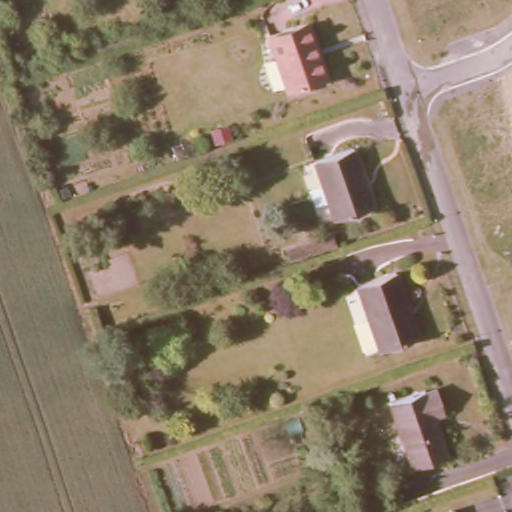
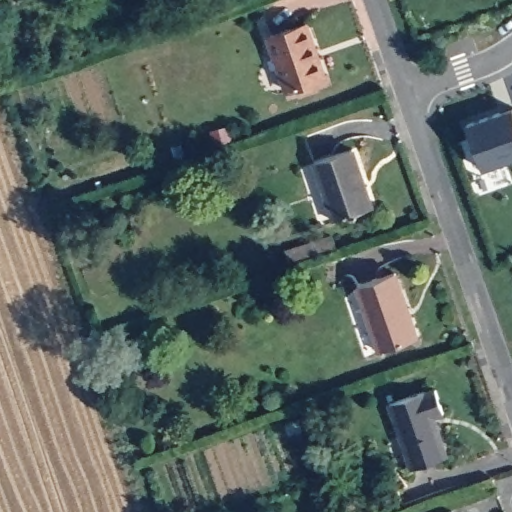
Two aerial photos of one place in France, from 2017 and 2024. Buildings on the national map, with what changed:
unchanged [(307,18),(325,70),(287,84),(269,31),(307,18)]
new [(512,108),(512,157),(484,168),(469,123),(512,108)]
unchanged [(357,147),(376,205),(339,219),(320,160),(357,147)]
unchanged [(395,272),(417,337),(379,350),(357,284),(395,272)]
unchanged [(425,389),(427,395),(438,392),(445,411),(434,414),(447,455),(412,467),(390,401),(425,389)]
unchanged [(453,510),(454,512),(447,512),(453,510)]

